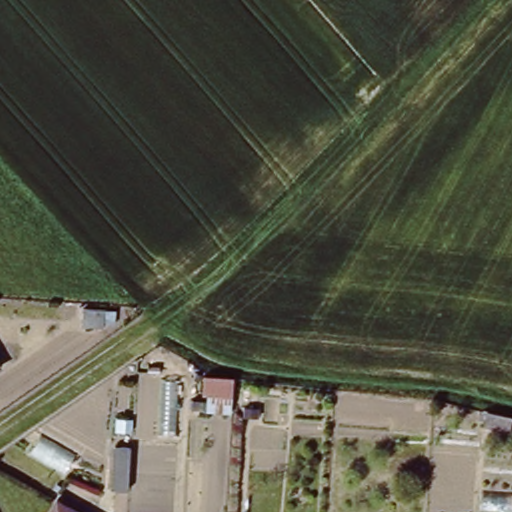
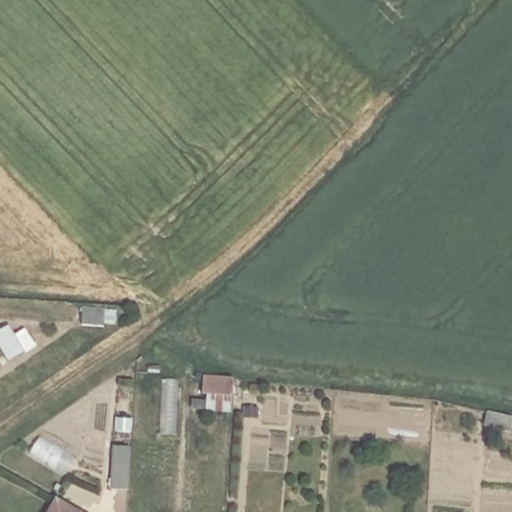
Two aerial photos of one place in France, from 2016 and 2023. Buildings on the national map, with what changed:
unchanged [(238,395),(206,394),(206,377),(217,377),(240,377),(238,395)]
unchanged [(130,487),(117,486),(119,444),(133,446),(130,487)]
unchanged [(40,498),(67,512),(33,512),(40,498)]

